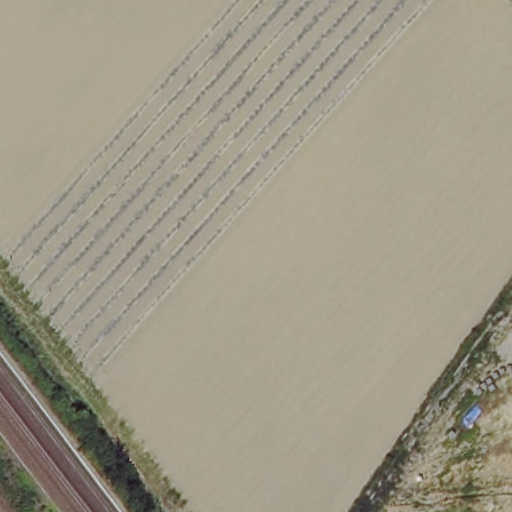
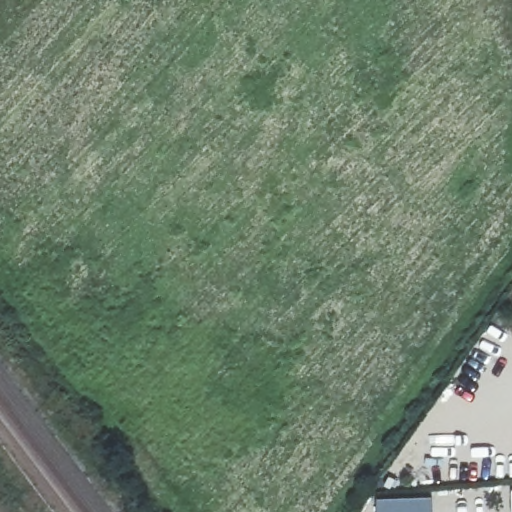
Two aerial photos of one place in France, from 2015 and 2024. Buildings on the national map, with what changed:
new [(512,512),(510,512),(510,488),(512,488),(512,512)]
new [(432,495),(433,512),(375,512),(375,497),(432,495)]

